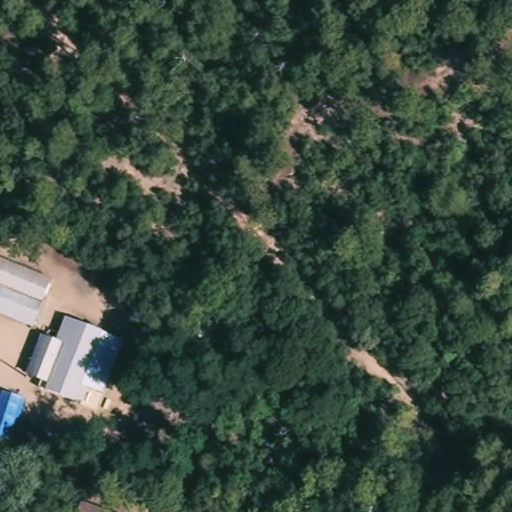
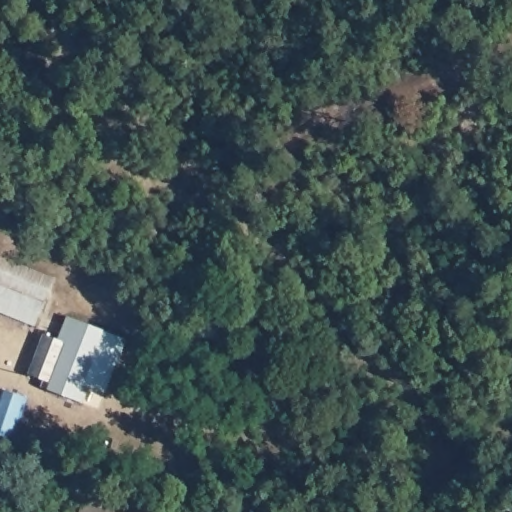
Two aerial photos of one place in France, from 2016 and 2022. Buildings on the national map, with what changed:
unchanged [(40,329),(0,313),(0,270),(3,262),(57,283),(40,329)]
unchanged [(91,390),(97,392),(91,408),(84,405),(80,402),(79,403),(57,395),(60,387),(39,379),(53,341),(66,346),(76,322),(112,336),(91,390)]
unchanged [(87,508),(99,512),(86,512),(87,508)]

